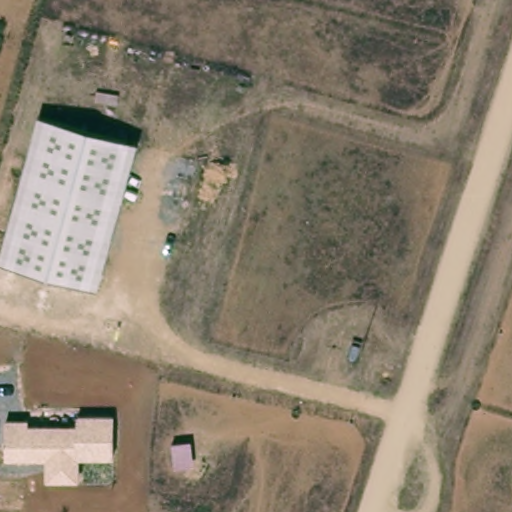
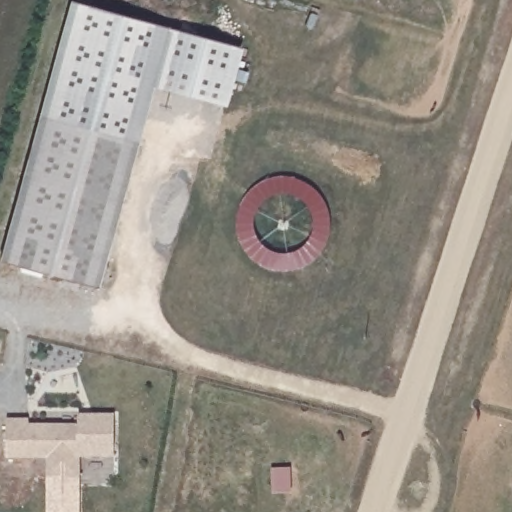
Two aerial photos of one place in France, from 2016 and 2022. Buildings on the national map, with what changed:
new [(68,0),(241,48),(226,107),(153,87),(137,142),(37,112),(68,0)]
unchanged [(137,142),(98,289),(0,261),(0,255),(37,112),(137,142)]
unchanged [(80,460),(80,481),(44,481),(44,460),(6,458),(6,420),(27,420),(27,426),(77,424),(77,416),(113,415),(114,459),(80,460)]

